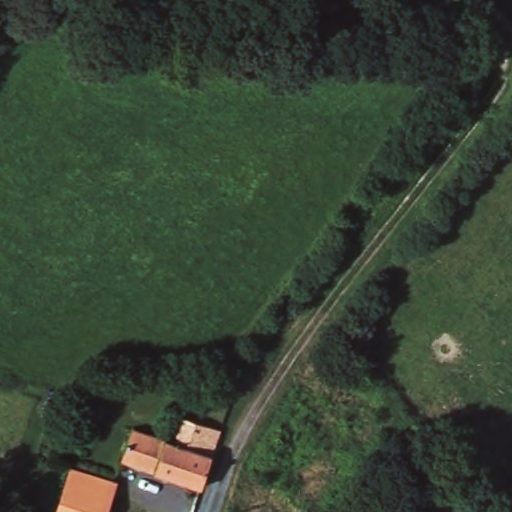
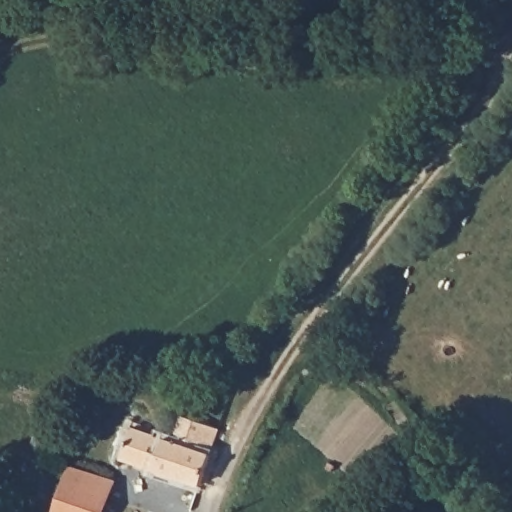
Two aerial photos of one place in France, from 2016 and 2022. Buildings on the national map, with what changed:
unchanged [(206,486),(127,460),(137,428),(179,443),(187,417),(225,430),(206,486)]
unchanged [(105,512),(57,512),(71,467),(115,482),(105,512)]

